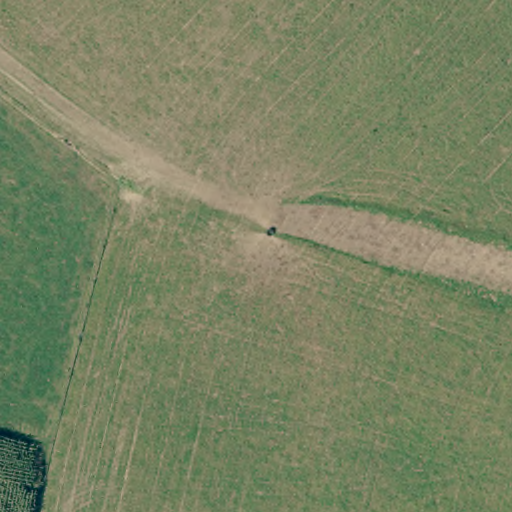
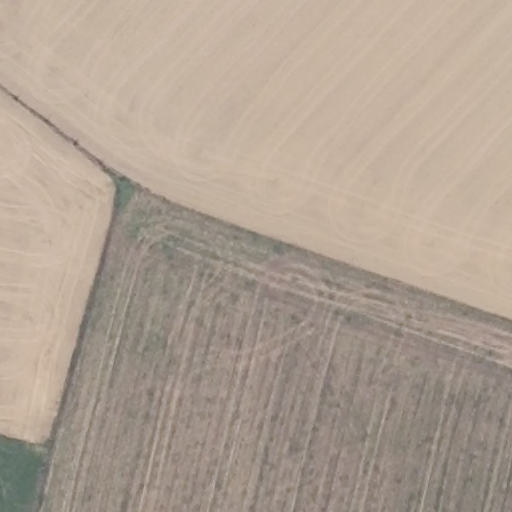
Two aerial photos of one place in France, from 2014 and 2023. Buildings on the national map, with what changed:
[]

